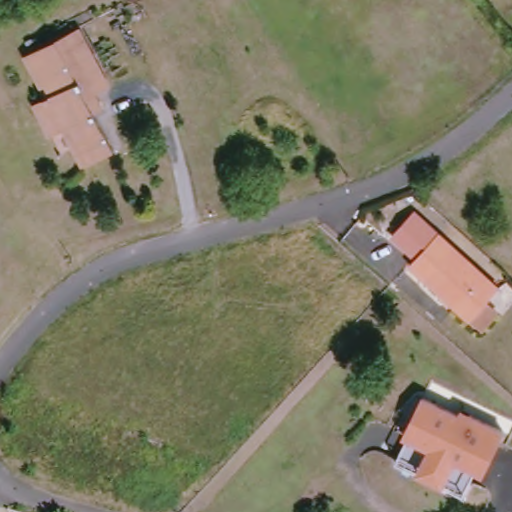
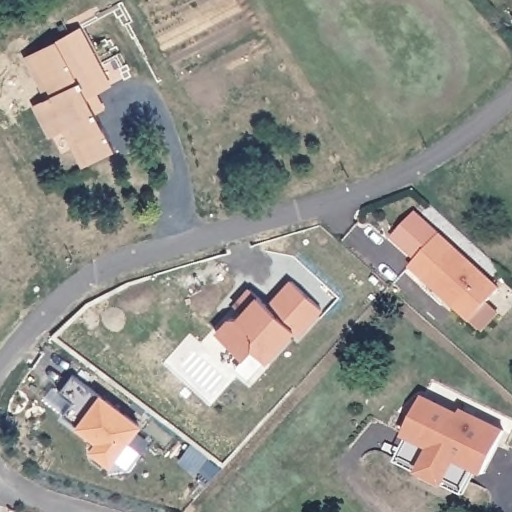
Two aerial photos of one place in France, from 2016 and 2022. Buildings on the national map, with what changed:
unchanged [(91,18),(70,27),(79,46),(86,43),(90,52),(85,56),(99,89),(92,92),(97,106),(87,112),(107,151),(77,164),(69,146),(73,144),(65,126),(41,135),(26,102),(39,95),(17,54),(62,29),(59,20),(85,7),(91,18)]
unchanged [(472,327),(461,317),(401,265),(431,231),(489,285),(477,300),(490,310),(472,327)]
new [(294,332),(267,362),(252,347),(244,357),(217,331),(227,320),(235,319),(241,312),(235,305),(247,290),(256,297),(266,305),(290,282),(322,311),(300,337),(294,332)]
new [(248,354),(261,366),(244,384),(231,372),(248,354)]
new [(74,403),(60,393),(72,377),(99,397),(101,394),(142,425),(112,466),(90,450),(96,442),(77,427),(64,416),(74,403)]
unchanged [(391,457),(402,432),(397,430),(416,392),(452,410),(455,405),(499,427),(477,470),(470,467),(459,491),(391,457)]

